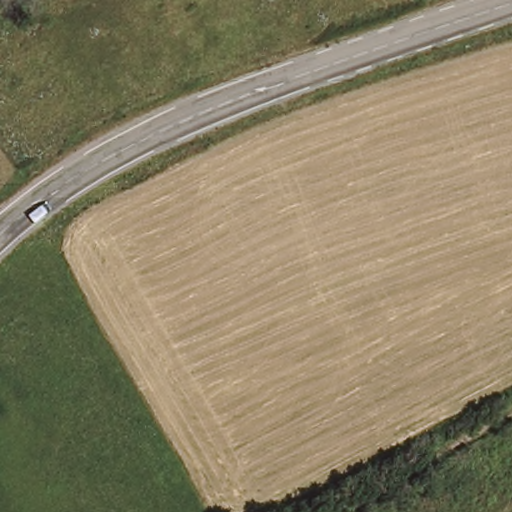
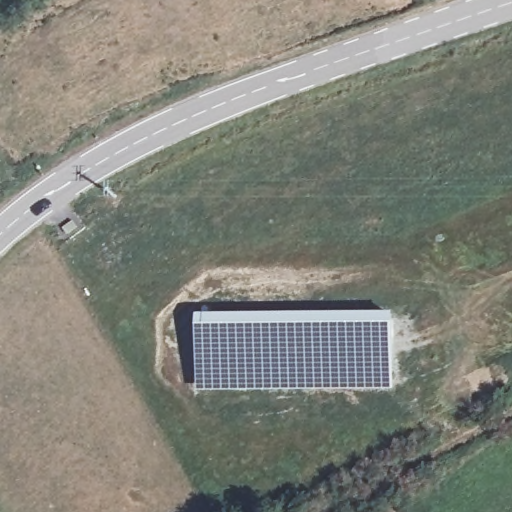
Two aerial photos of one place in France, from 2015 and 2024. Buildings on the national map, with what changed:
new [(395,313),(396,392),(197,393),(196,315),(395,313)]

